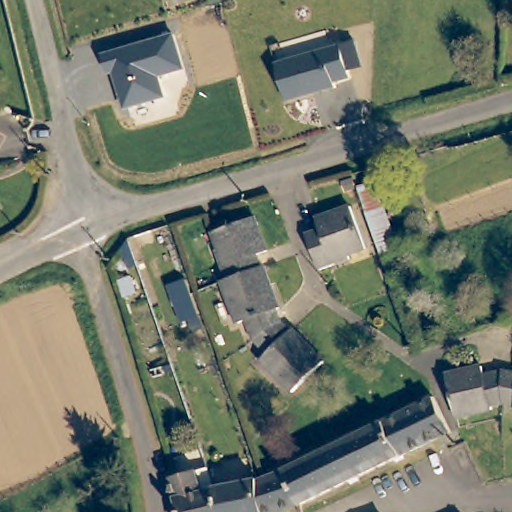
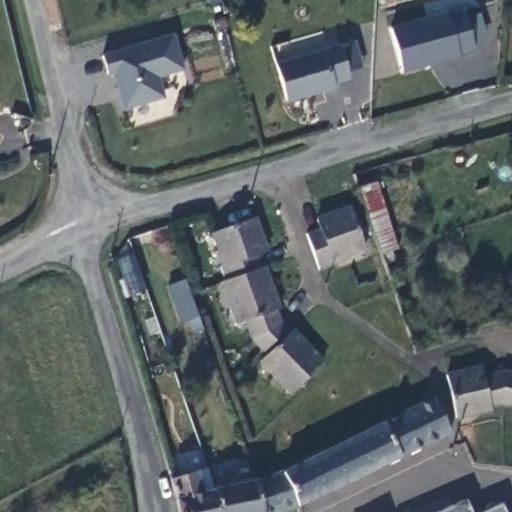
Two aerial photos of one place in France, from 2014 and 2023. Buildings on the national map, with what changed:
new [(448,15),(463,11),(465,19),(480,15),(486,39),(472,43),(475,51),(460,55),(460,57),(403,73),(392,30),(447,14),(448,15)]
unchanged [(171,34),(182,69),(157,76),(165,96),(124,108),(111,74),(107,75),(101,53),(171,34)]
unchanged [(351,78),(335,82),(336,87),(287,100),(276,62),(342,44),(351,78)]
unchanged [(374,207),(366,182),(380,177),(388,202),(402,243),(387,248),(374,207)]
unchanged [(329,230),(323,213),(356,203),(370,244),(337,255),(340,260),(325,265),(315,235),(329,230)]
unchanged [(253,219),(266,250),(250,257),(255,269),(262,267),(278,308),(272,310),(276,324),(285,335),(289,333),(320,364),(293,391),(262,359),(269,352),(255,338),(248,319),(238,323),(221,280),(226,278),(217,255),(222,254),(214,230),(253,219)]
unchanged [(187,284),(197,312),(188,314),(179,318),(166,283),(175,280),(185,277),(187,284)]
unchanged [(482,373),(500,369),(512,370),(512,399),(503,397),(487,402),(487,404),(456,412),(445,373),(478,363),(482,373)]
unchanged [(298,504),(275,512),(263,512),(257,481),(270,476),(435,398),(451,429),(298,504)]
unchanged [(221,512),(180,512),(179,501),(171,479),(197,470),(204,490),(215,488),(217,486),(221,512)]
unchanged [(263,512),(221,512),(217,486),(257,478),(257,481),(263,512)]
new [(475,512),(437,512),(467,499),(475,512)]
new [(502,503),(507,512),(482,512),(502,503)]

